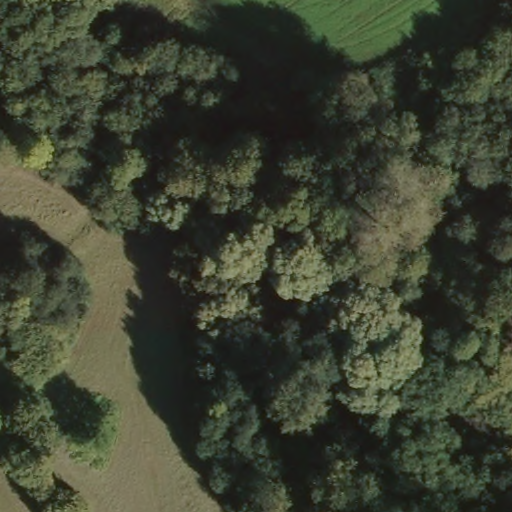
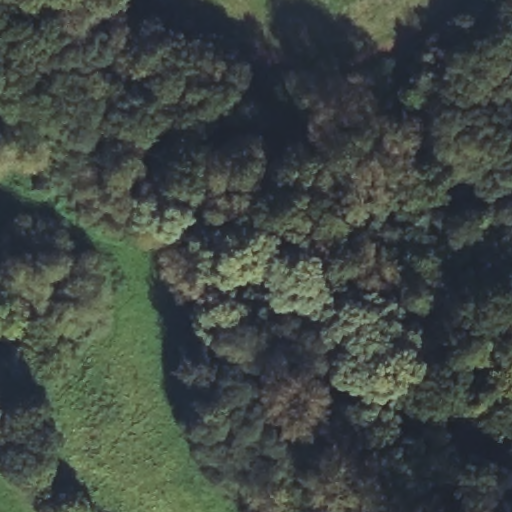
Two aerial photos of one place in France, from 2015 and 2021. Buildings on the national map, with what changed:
unchanged [(343,141),(340,81),(367,80),(373,138),(343,141)]
unchanged [(232,147),(184,149),(186,126),(230,126),(230,129),(232,147)]

